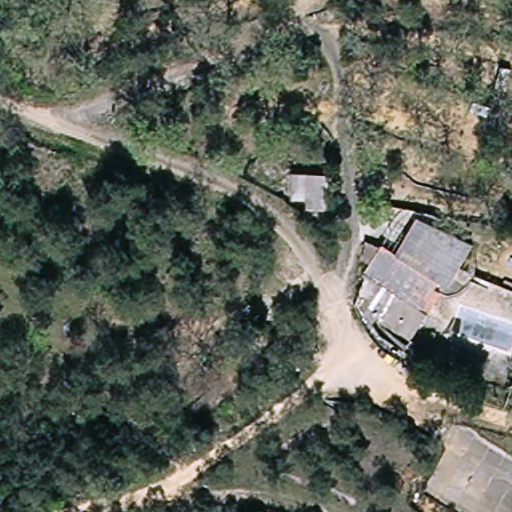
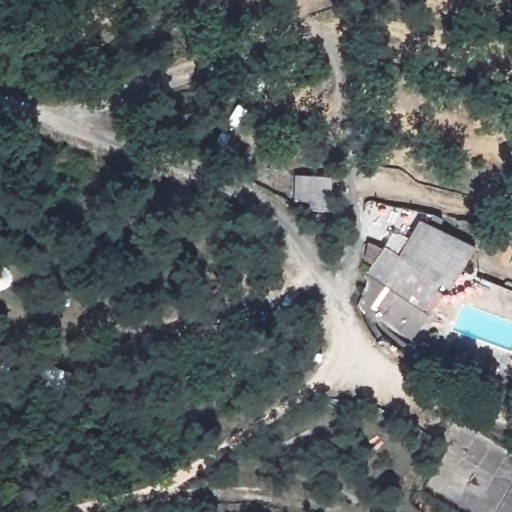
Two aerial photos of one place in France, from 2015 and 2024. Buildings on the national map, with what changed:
unchanged [(332,163),(330,194),(309,194),(308,162),(332,163)]
unchanged [(468,250),(445,294),(434,289),(430,298),(438,303),(415,338),(352,295),(378,256),(392,263),(412,228),(468,250)]

